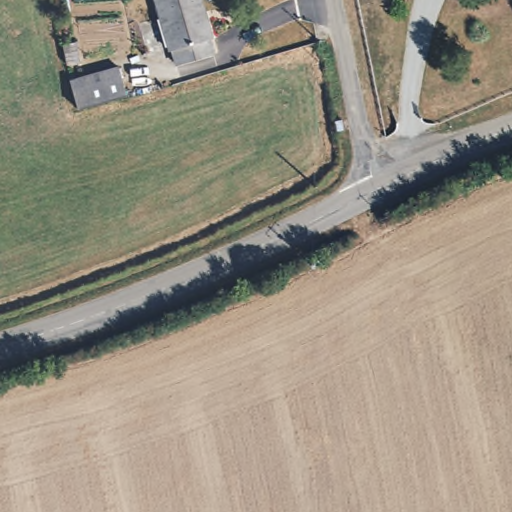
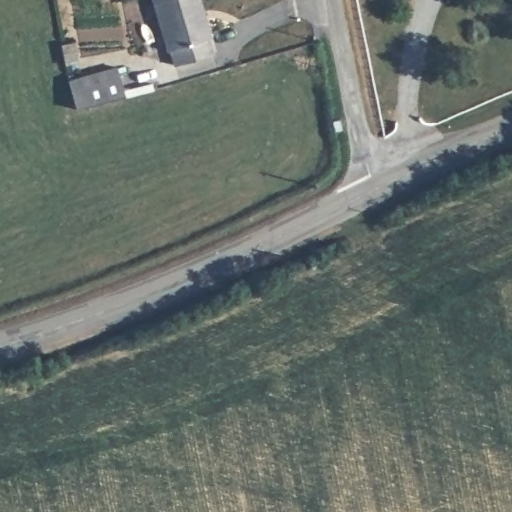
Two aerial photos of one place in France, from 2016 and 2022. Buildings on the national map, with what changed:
unchanged [(180,64),(174,47),(171,49),(158,0),(202,0),(216,54),(180,64)]
unchanged [(77,109),(72,87),(70,77),(119,65),(121,72),(127,95),(77,109)]

